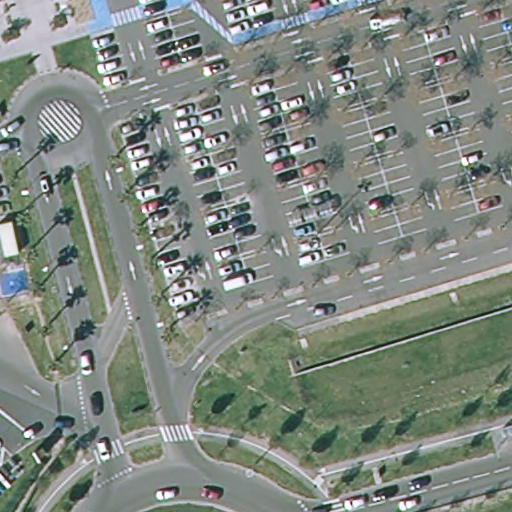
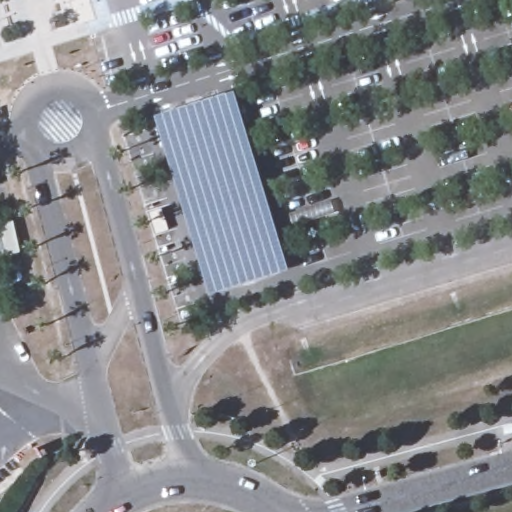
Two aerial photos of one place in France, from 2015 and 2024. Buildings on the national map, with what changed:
new [(156,116),(236,91),(291,269),(211,293),(156,116)]

